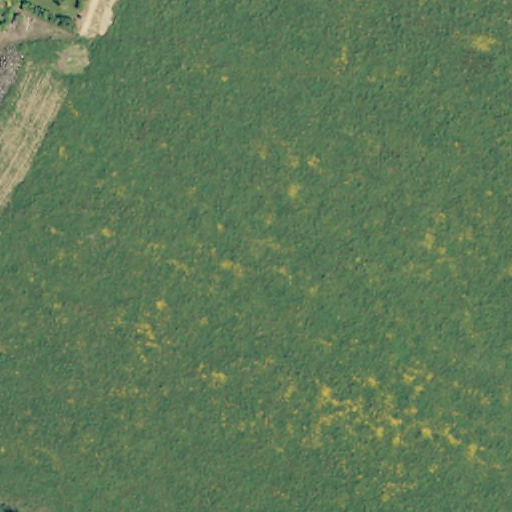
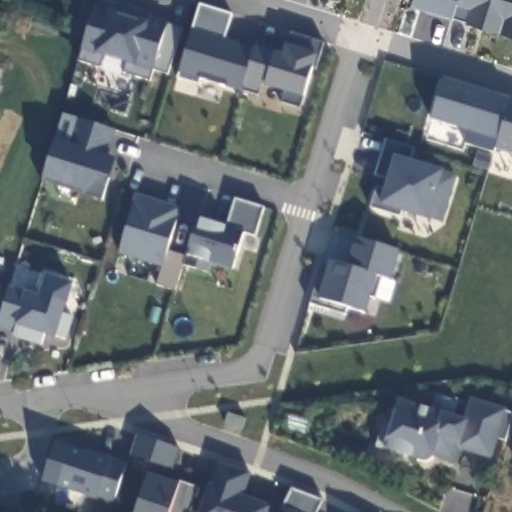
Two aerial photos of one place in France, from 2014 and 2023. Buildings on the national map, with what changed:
new [(453,16),(411,4),(412,0),(458,0),(453,16)]
new [(512,38),(465,24),(466,20),(453,16),(457,0),(512,0),(512,38)]
new [(123,72),(127,63),(104,56),(100,68),(77,60),(94,3),(106,6),(183,27),(168,75),(154,70),(152,81),(123,72)]
new [(199,78),(197,84),(176,77),(199,4),(232,15),(225,39),(253,46),(242,90),(199,78)]
new [(242,90),(253,46),(284,55),(288,44),(290,33),(324,42),(316,69),(311,67),(300,107),(282,102),(285,92),(260,85),(256,95),(242,90)]
new [(503,122),(509,100),(512,102),(512,153),(495,148),(494,151),(465,142),(469,131),(431,119),(443,77),(481,90),(473,113),(503,122)]
new [(43,180),(54,139),(72,144),(76,119),(114,130),(108,154),(115,160),(102,201),(43,180)]
new [(426,219),(401,211),(399,216),(371,207),(377,186),(381,187),(384,177),(375,175),(385,139),(415,149),(412,160),(442,169),(456,174),(442,222),(426,219)]
new [(156,282),(161,266),(120,255),(137,195),(182,208),(166,250),(185,255),(198,217),(228,226),(235,199),(263,207),(254,235),(244,232),(232,270),(213,263),(210,271),(186,265),(175,290),(156,282)]
new [(390,281),(382,278),(375,298),(370,297),(366,313),(348,309),(345,315),(314,306),(319,297),(330,260),(344,264),(352,236),(399,250),(390,281)]
new [(12,336),(12,332),(0,329),(0,313),(7,285),(25,292),(64,302),(62,312),(74,316),(66,340),(53,337),(43,335),(41,346),(12,336)]
new [(497,438),(490,458),(459,450),(456,462),(432,456),(429,461),(423,461),(382,448),(396,400),(430,409),(435,394),(458,401),(454,413),(466,417),(471,400),(512,411),(512,422),(505,440),(497,438)]
new [(132,512),(146,460),(132,455),(138,435),(180,448),(172,469),(163,466),(160,477),(179,482),(198,486),(189,512),(132,512)]
new [(113,506),(57,485),(69,444),(128,463),(113,506)]
new [(252,473),(242,495),(269,505),(266,512),(199,512),(216,463),(252,473)]
new [(324,501),(318,512),(279,512),(291,488),(324,501)]

